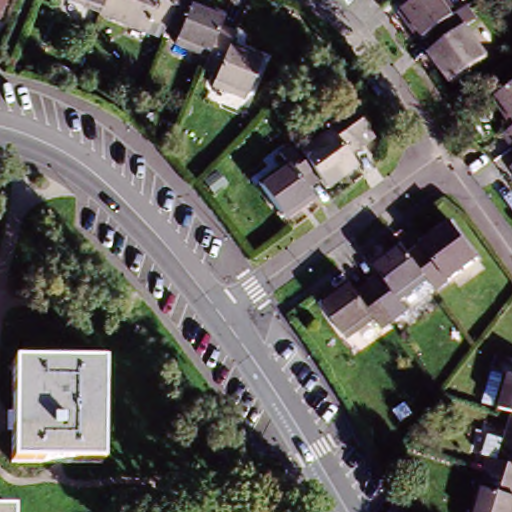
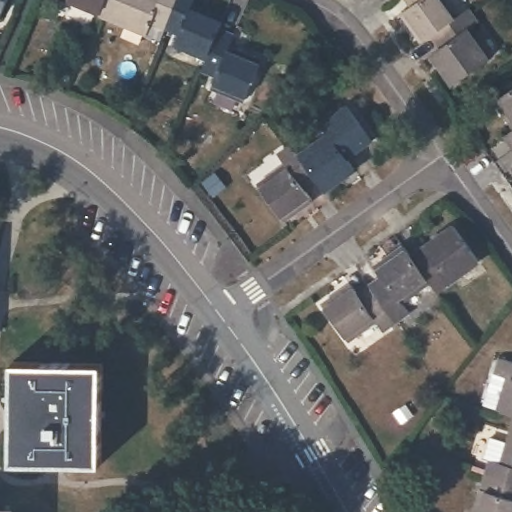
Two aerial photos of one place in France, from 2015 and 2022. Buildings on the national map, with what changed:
unchanged [(2,0),(0,6),(0,0),(2,0)]
unchanged [(66,0),(97,0),(92,11),(66,0)]
unchanged [(168,0),(158,23),(141,16),(135,30),(92,11),(97,0),(168,0)]
unchanged [(182,0),(182,1),(222,17),(216,30),(203,57),(166,41),(170,29),(158,23),(168,0),(182,0)]
unchanged [(433,35),(421,44),(399,13),(410,5),(406,0),(448,0),(459,15),(433,35)]
unchanged [(484,22),(471,30),(492,59),(452,87),(432,59),(445,50),(433,35),(459,15),(472,6),(484,22)]
unchanged [(203,57),(216,30),(232,36),(225,53),(256,66),(238,110),(207,96),(214,80),(196,72),(203,57)]
unchanged [(512,87),(512,117),(498,97),(512,87)]
unchanged [(322,183),(301,157),(326,138),(317,126),(344,106),(374,143),(349,163),(357,173),(331,194),(322,183)]
unchanged [(512,126),(512,147),(502,134),(512,126)]
unchanged [(322,183),(311,193),(319,205),(290,227),(262,191),(290,168),(280,156),(292,146),(301,157),(322,183)]
unchanged [(430,286),(410,258),(450,230),(478,269),(437,297),(430,286)]
unchanged [(365,290),(379,281),(370,270),(402,246),(410,258),(430,286),(398,307),(406,322),(393,330),(365,290)]
unchanged [(382,338),(374,325),(346,342),(319,306),(347,286),(355,297),(365,290),(393,330),(382,338)]
unchanged [(511,374),(498,369),(503,355),(512,358),(512,420),(498,415),(511,374)]
unchanged [(106,367),(100,464),(6,457),(13,360),(106,367)]
unchanged [(404,397),(416,409),(405,419),(393,407),(404,397)]
unchanged [(502,457),(512,427),(512,480),(482,470),(488,453),(502,457)]
unchanged [(482,470),(512,480),(512,512),(468,512),(482,470)]

